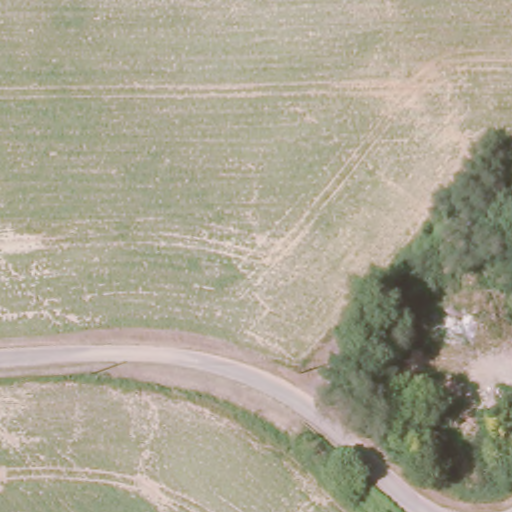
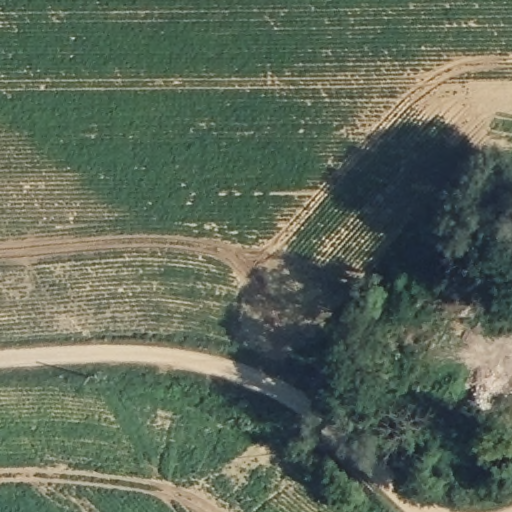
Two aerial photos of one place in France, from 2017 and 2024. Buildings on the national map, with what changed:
unchanged [(347,349),(347,366),(335,365),(335,348),(347,349)]

